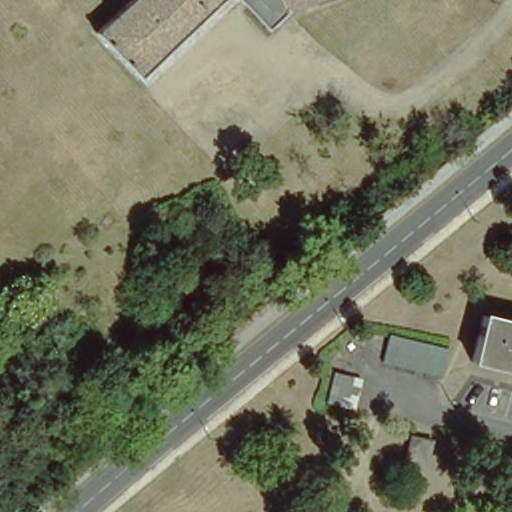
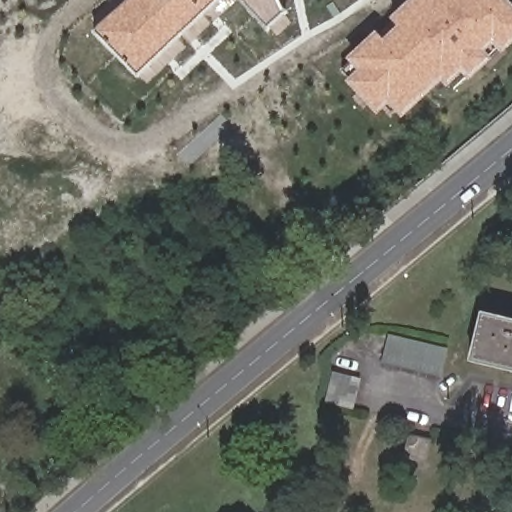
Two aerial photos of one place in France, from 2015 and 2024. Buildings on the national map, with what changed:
unchanged [(96,32),(128,0),(217,0),(139,75),(96,32)]
unchanged [(260,30),(239,0),(278,0),(283,10),(260,30)]
new [(337,70),(346,62),(344,60),(373,33),(408,0),(505,0),(512,7),(512,45),(500,56),(494,49),(486,55),(490,60),(467,82),(461,75),(448,86),(443,80),(399,119),(388,104),(374,115),(344,83),(345,80),(337,70)]
unchanged [(512,376),(471,366),(482,322),(512,329),(512,376)]
unchanged [(407,344),(442,354),(447,355),(441,381),(381,366),(388,338),(407,344)]
unchanged [(352,407),(324,400),(331,372),(359,380),(353,408),(352,407)]
unchanged [(430,440),(425,460),(406,456),(411,436),(430,440)]

